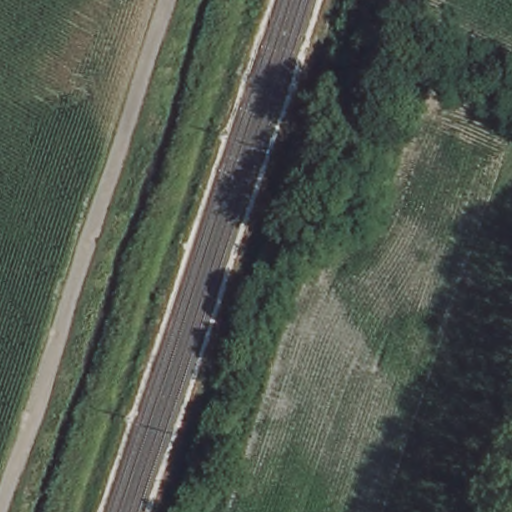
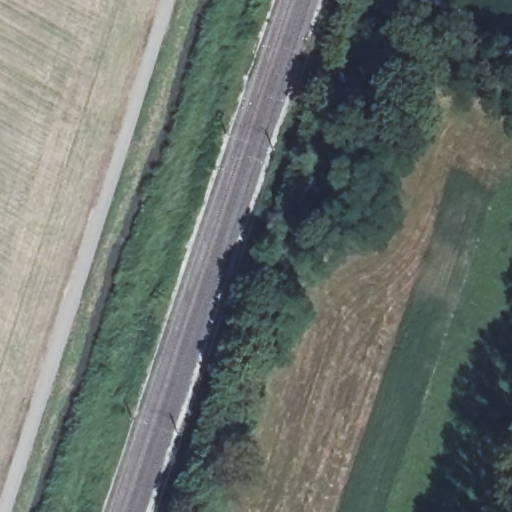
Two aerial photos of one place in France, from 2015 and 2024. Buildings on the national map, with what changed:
unchanged [(244,13),(260,18),(256,33),(239,27),(244,13)]

